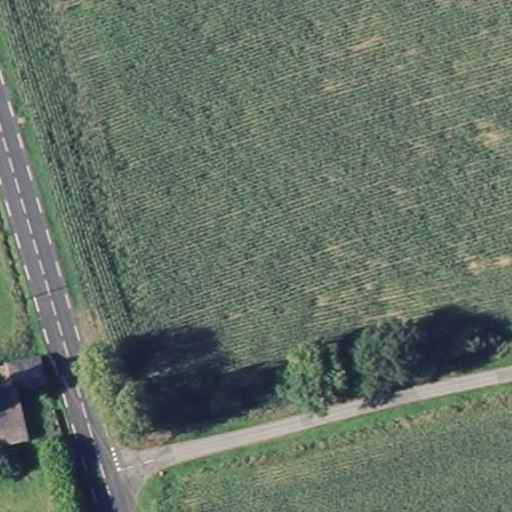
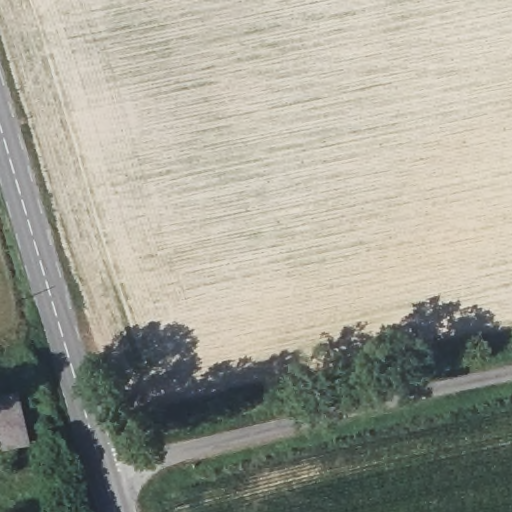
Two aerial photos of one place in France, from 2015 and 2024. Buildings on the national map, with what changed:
unchanged [(5,395),(0,378),(0,372),(43,358),(51,387),(19,396),(30,442),(11,447),(14,458),(4,460),(0,446),(0,397),(5,395)]

